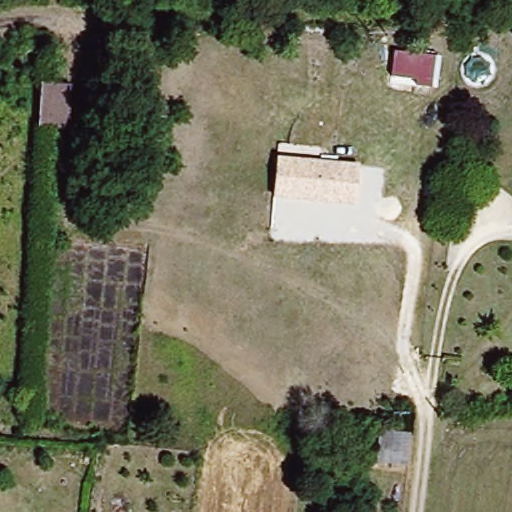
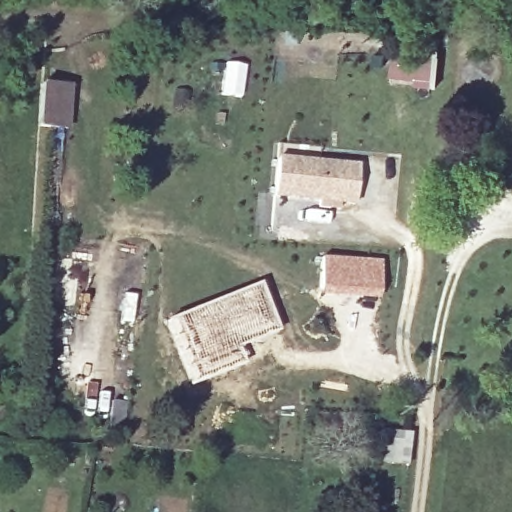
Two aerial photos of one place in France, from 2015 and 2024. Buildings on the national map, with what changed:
unchanged [(438,58),(435,86),(415,84),(416,79),(391,75),(393,53),(438,58)]
unchanged [(70,103),(65,166),(39,164),(42,99),(70,103)]
unchanged [(361,164),(356,206),(273,198),(277,157),(361,164)]
new [(319,261),(379,262),(377,292),(318,291),(319,261)]
new [(260,281),(278,329),(236,349),(237,354),(197,378),(174,317),(260,281)]
unchanged [(408,457),(392,454),(395,423),(412,424),(408,457)]

